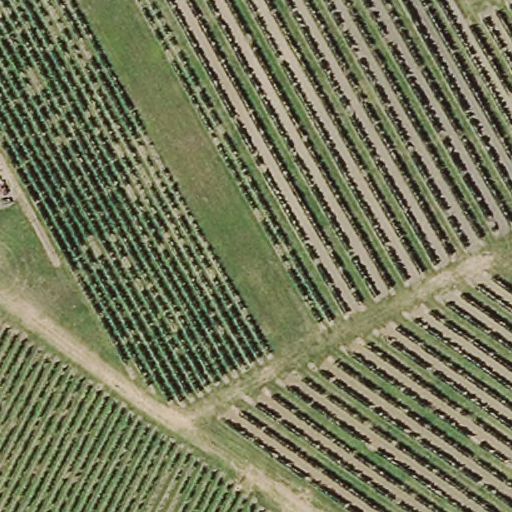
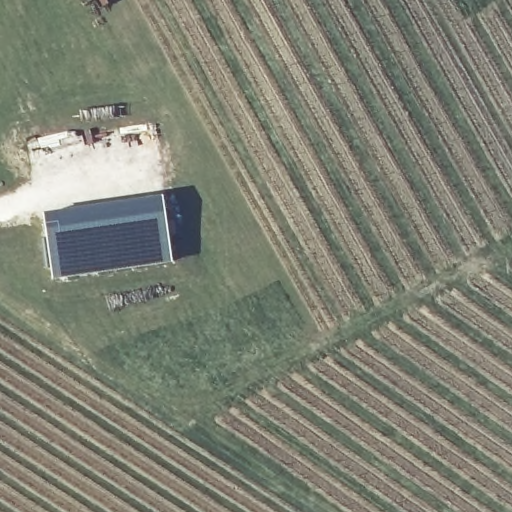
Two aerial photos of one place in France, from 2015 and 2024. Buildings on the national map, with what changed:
new [(167,195),(175,260),(56,276),(47,212),(167,195)]

